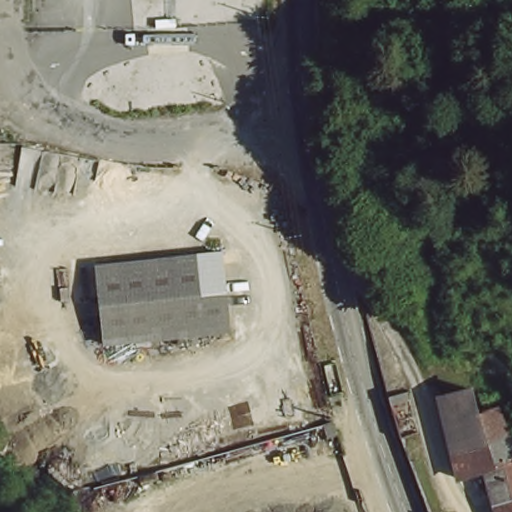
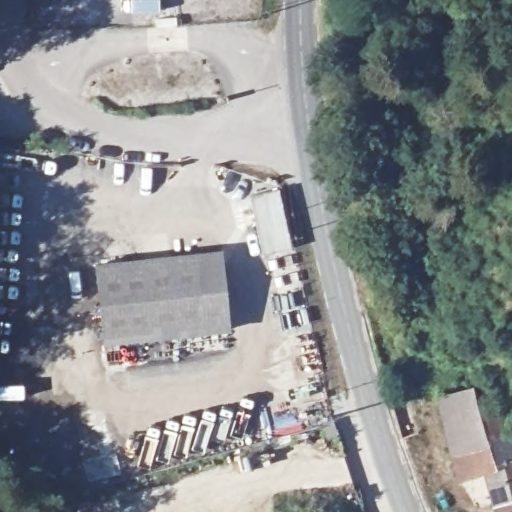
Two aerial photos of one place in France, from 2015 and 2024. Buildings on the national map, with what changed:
new [(291,249),(262,255),(250,197),(279,190),(291,249)]
unchanged [(226,335),(100,350),(90,271),(220,257),(226,335)]
unchanged [(412,404),(391,409),(386,392),(409,388),(412,404)]
unchanged [(490,474),(487,476),(460,484),(442,401),(472,390),(481,424),(500,417),(512,447),(512,502),(495,511),(490,474)]
unchanged [(338,441),(323,444),(320,429),(333,425),(338,441)]
unchanged [(495,511),(512,502),(512,512),(495,512),(495,511)]

